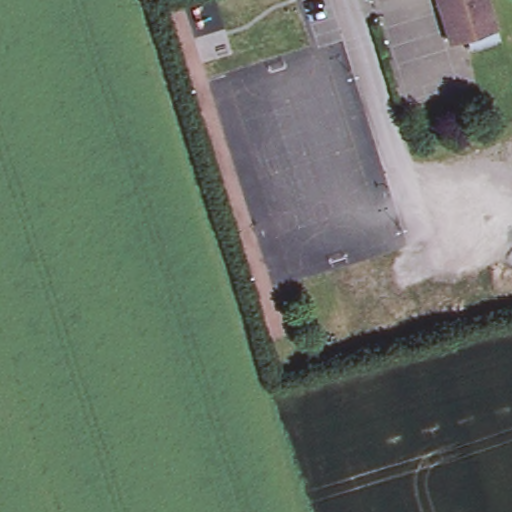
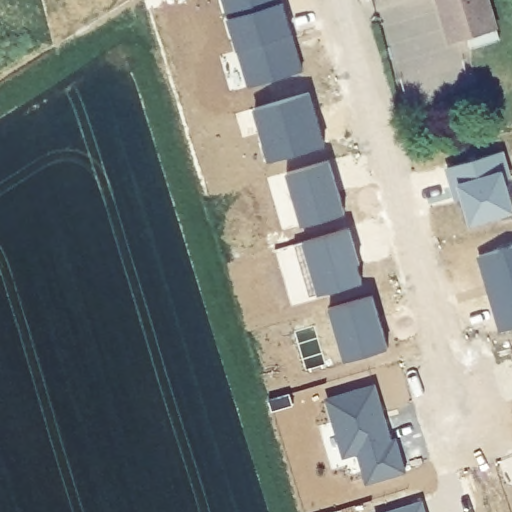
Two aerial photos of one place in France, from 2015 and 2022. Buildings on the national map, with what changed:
new [(303,72),(248,87),(223,0),(282,0),(303,72)]
unchanged [(498,28),(452,42),(439,0),(489,0),(498,28)]
new [(310,95),(316,112),(312,113),(314,120),(317,119),(326,148),(271,164),(256,111),(310,95)]
new [(454,190),(448,171),(507,154),(512,173),(512,180),(505,182),(512,206),(512,214),(473,225),(465,199),(457,202),(454,190)]
new [(328,164),(343,215),(301,227),(286,176),(328,164)]
new [(347,231),(359,285),(318,296),(303,245),(347,231)]
new [(480,259),(512,250),(512,332),(502,334),(497,316),(485,277),(480,259)]
new [(372,297),(387,351),(343,363),(328,309),(372,297)]
new [(375,389),(392,445),(397,443),(405,474),(369,485),(360,455),(346,459),(329,403),(375,389)]
new [(426,512),(399,512),(424,504),(426,512)]

